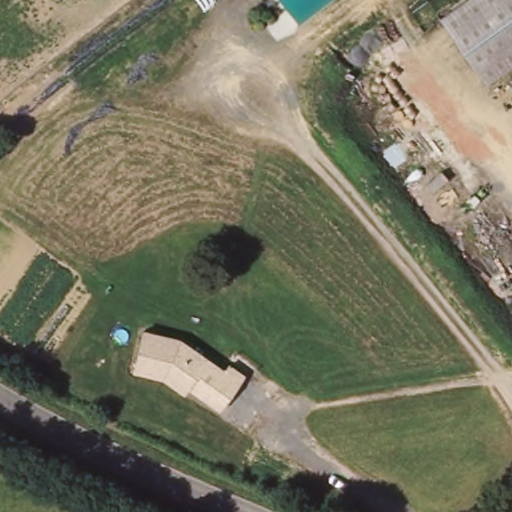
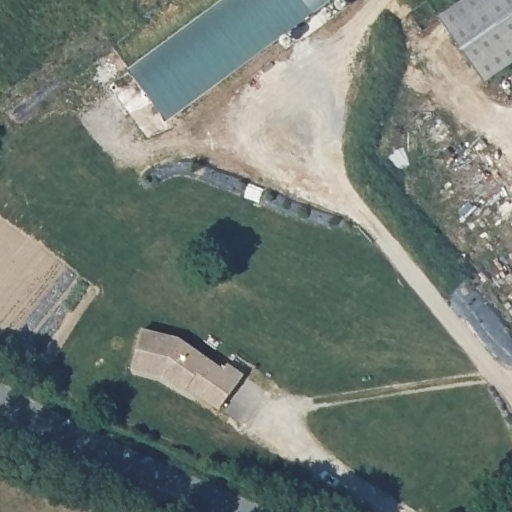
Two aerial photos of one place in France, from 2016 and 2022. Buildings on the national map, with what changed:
new [(169,119),(130,68),(220,0),(282,0),(299,23),(169,119)]
unchanged [(282,0),(329,0),(299,23),(282,0)]
unchanged [(512,0),(512,61),(482,82),(436,14),(455,0),(512,0)]
unchanged [(143,329),(183,339),(227,371),(231,365),(245,376),(221,411),(188,388),(183,395),(163,378),(133,371),(143,329)]

